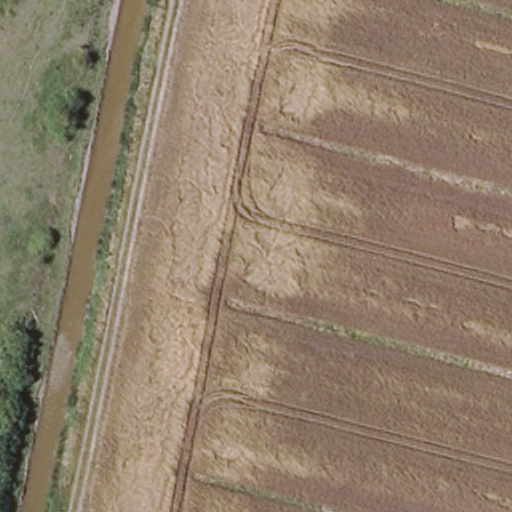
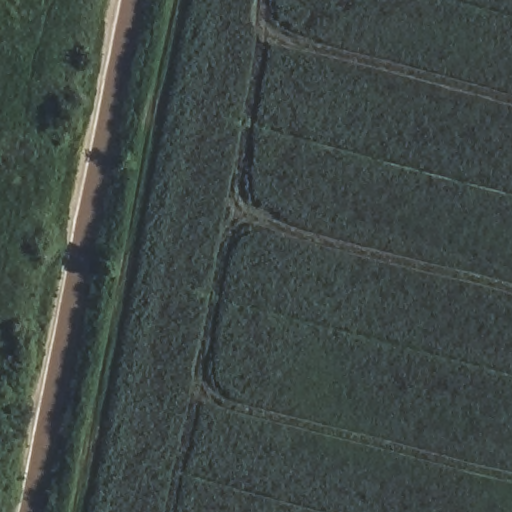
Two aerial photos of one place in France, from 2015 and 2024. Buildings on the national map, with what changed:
[]

